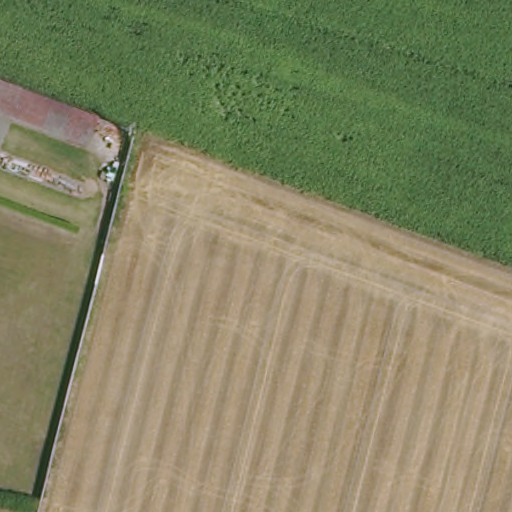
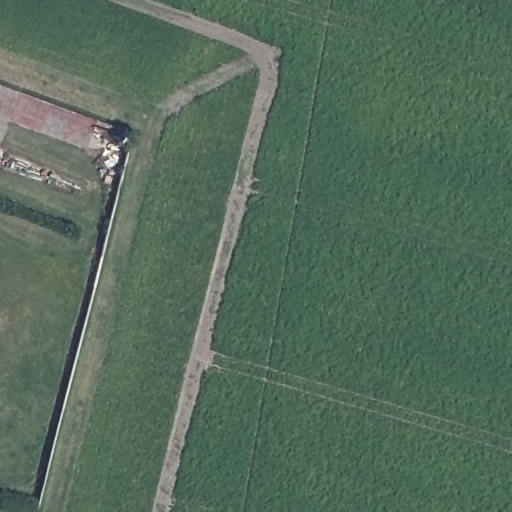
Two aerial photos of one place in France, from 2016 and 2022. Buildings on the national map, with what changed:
unchanged [(2,84),(0,89),(0,83),(2,84)]
unchanged [(86,116),(75,143),(0,115),(0,89),(2,84),(86,116)]

